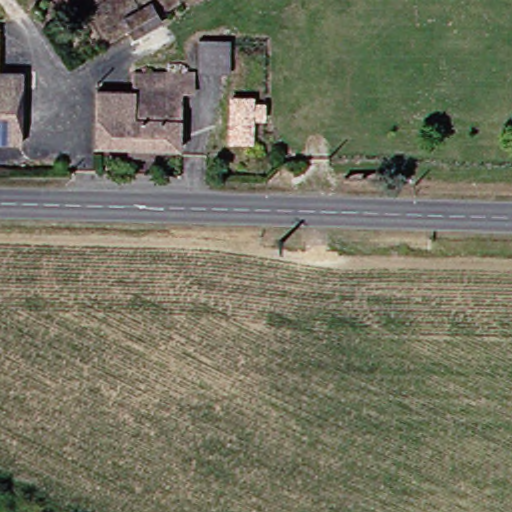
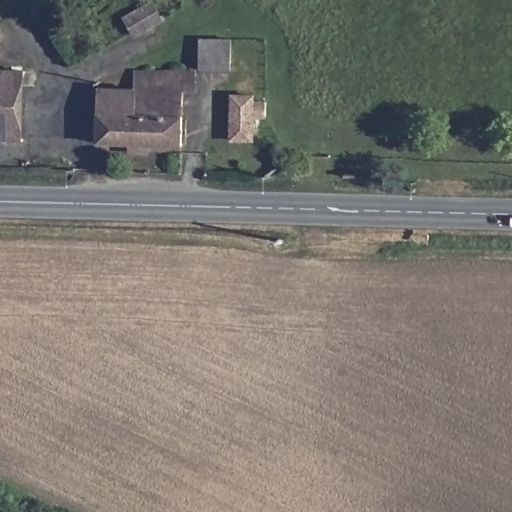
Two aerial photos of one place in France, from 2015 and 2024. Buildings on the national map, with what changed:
unchanged [(171,19),(146,31),(136,11),(159,0),(162,0),(171,19)]
unchanged [(0,25),(1,25),(0,67),(0,25)]
unchanged [(242,37),(240,70),(209,69),(210,36),(242,37)]
unchanged [(25,139),(0,138),(0,67),(28,68),(25,139)]
unchanged [(146,84),(146,69),(204,71),(204,87),(195,88),(193,145),(105,142),(108,83),(146,84)]
unchanged [(265,96),(266,106),(276,106),(275,120),(272,121),(270,145),(239,144),(240,95),(265,96)]

